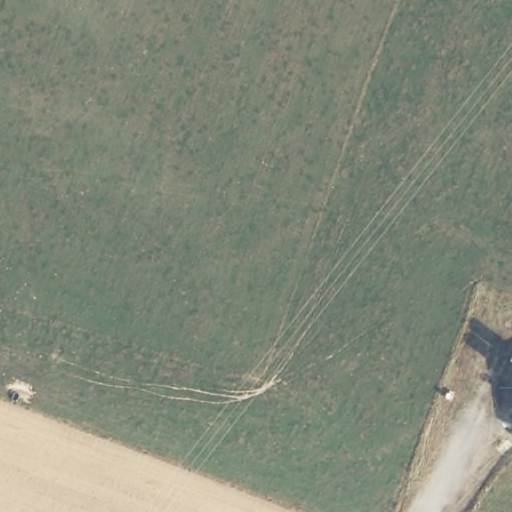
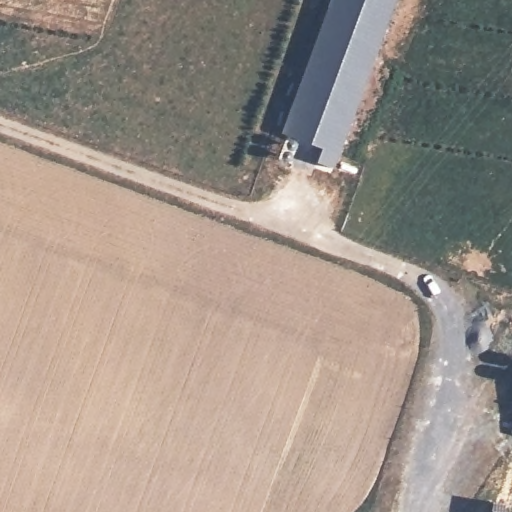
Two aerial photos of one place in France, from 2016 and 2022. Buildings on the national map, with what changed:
new [(388,0),(332,152),(338,155),(333,169),(317,163),(322,149),(288,136),(339,0),(388,0)]
new [(396,0),(338,155),(332,152),(388,0),(396,0)]
unchanged [(511,408),(512,405),(512,409),(511,408)]

